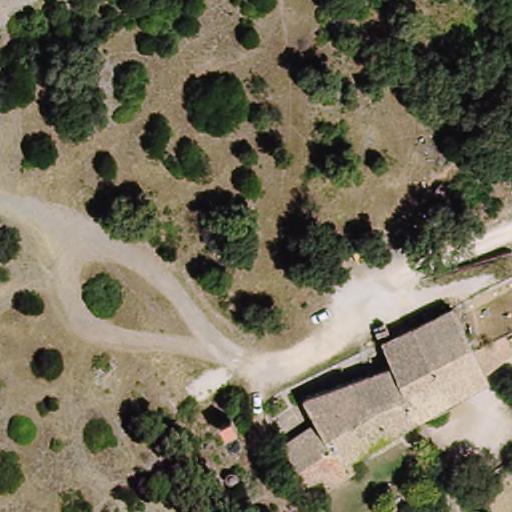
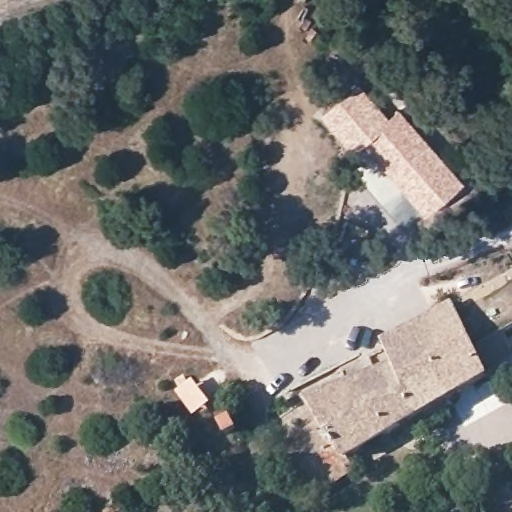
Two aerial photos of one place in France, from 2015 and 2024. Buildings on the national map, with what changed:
new [(461,178),(422,212),(382,169),(360,146),(350,154),(317,114),(358,81),(387,114),(396,105),(461,178)]
unchanged [(443,294),(486,368),(413,418),(380,361),(371,341),(443,294)]
unchanged [(354,459),(362,474),(311,509),(282,458),(324,430),(310,412),(380,361),(413,418),(354,459)]

